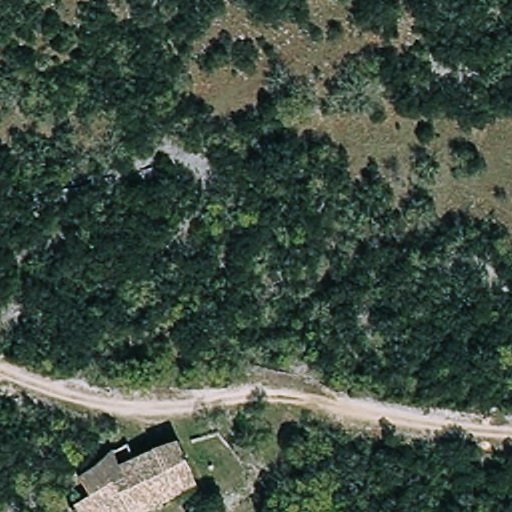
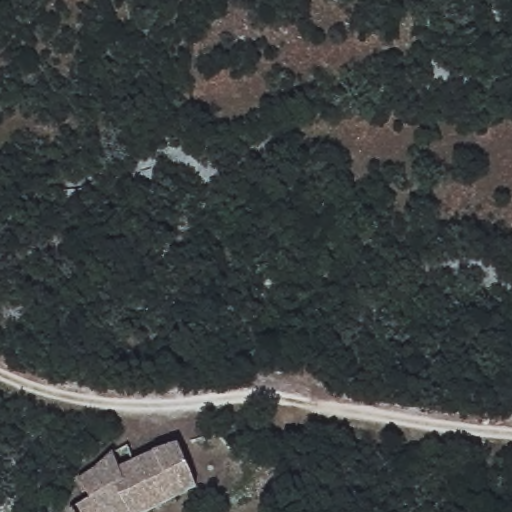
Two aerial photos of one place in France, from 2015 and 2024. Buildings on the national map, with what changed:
unchanged [(93,495),(80,473),(124,450),(132,463),(174,440),(198,482),(144,512),(73,512),(71,507),(93,495)]

